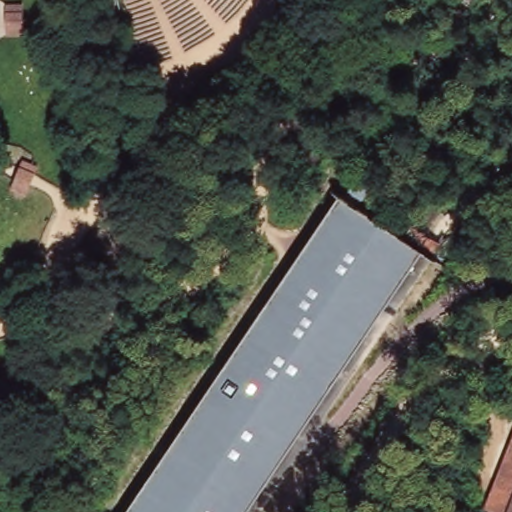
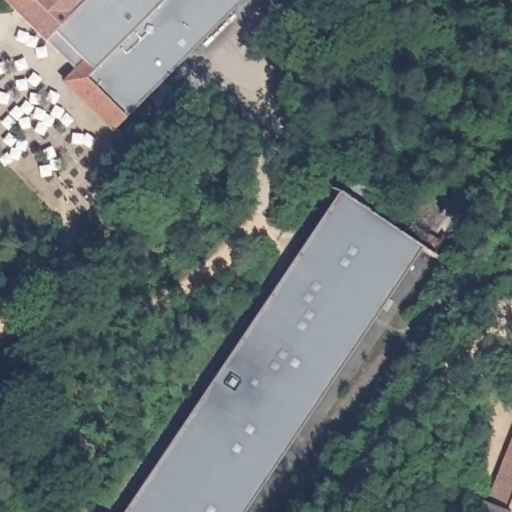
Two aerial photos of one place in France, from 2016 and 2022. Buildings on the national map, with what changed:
new [(73,71),(1,0),(242,0),(113,133),(60,83),(73,71)]
new [(279,0),(294,0),(293,4),(279,0)]
unchanged [(340,196),(356,183),(371,192),(358,207),(403,238),(410,228),(440,245),(432,259),(422,251),(247,512),(126,512),(340,196)]
unchanged [(512,444),(512,454),(509,453),(512,444)]
unchanged [(512,512),(508,512),(512,503),(512,512)]

